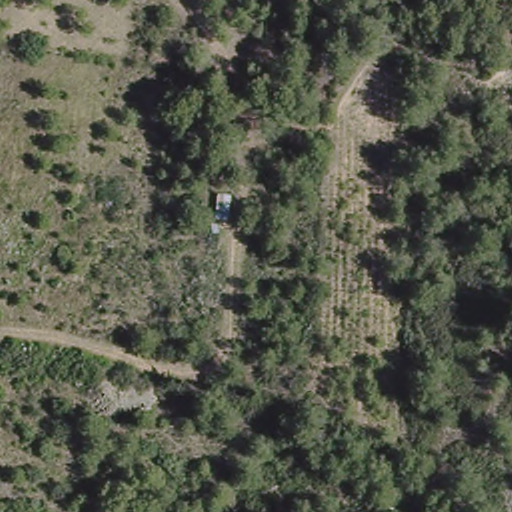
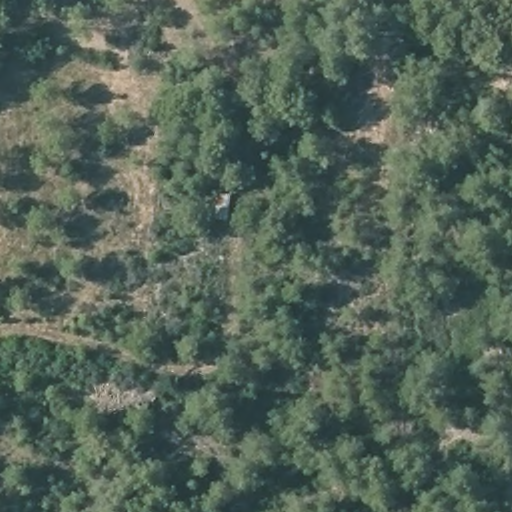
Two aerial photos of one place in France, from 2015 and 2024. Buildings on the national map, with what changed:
unchanged [(210,219),(215,179),(231,180),(228,223),(210,219)]

